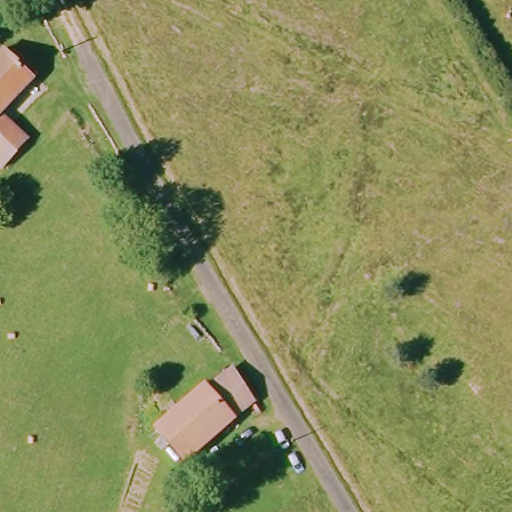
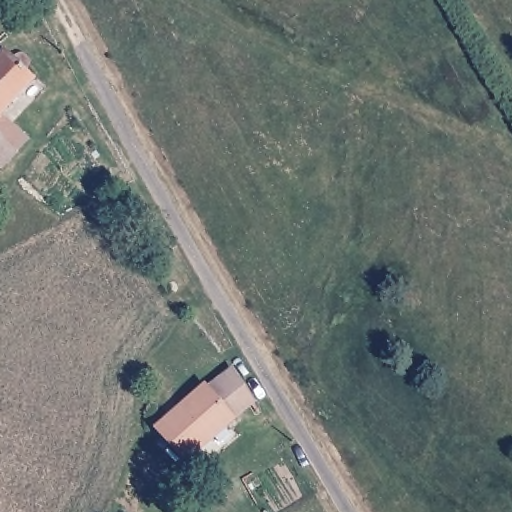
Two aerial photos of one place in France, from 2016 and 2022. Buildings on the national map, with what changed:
unchanged [(31,140),(8,169),(0,162),(0,70),(14,56),(22,66),(29,58),(39,70),(33,76),(38,82),(7,116),(31,140)]
unchanged [(231,426),(226,420),(182,463),(152,430),(199,385),(203,390),(228,370),(256,411),(231,426)]

